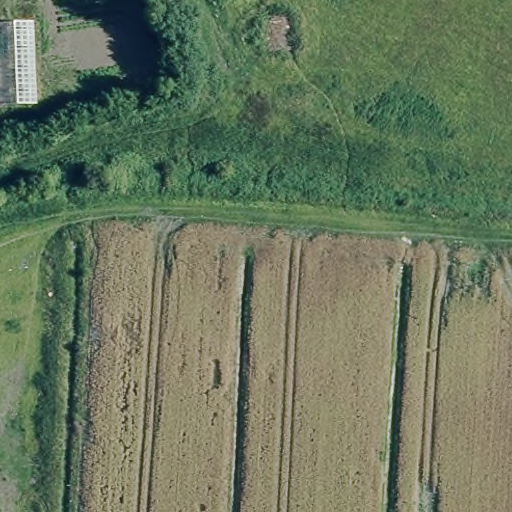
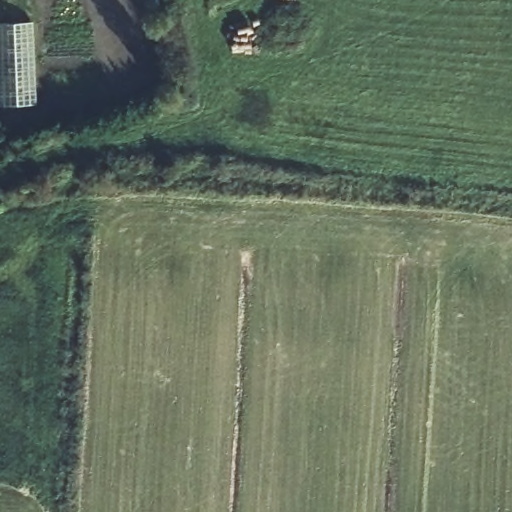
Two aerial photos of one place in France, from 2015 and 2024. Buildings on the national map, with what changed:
unchanged [(37,104),(0,106),(0,96),(0,23),(15,23),(32,21),(37,104)]

